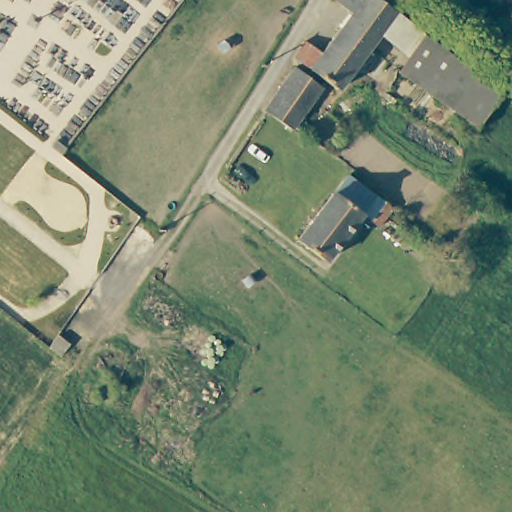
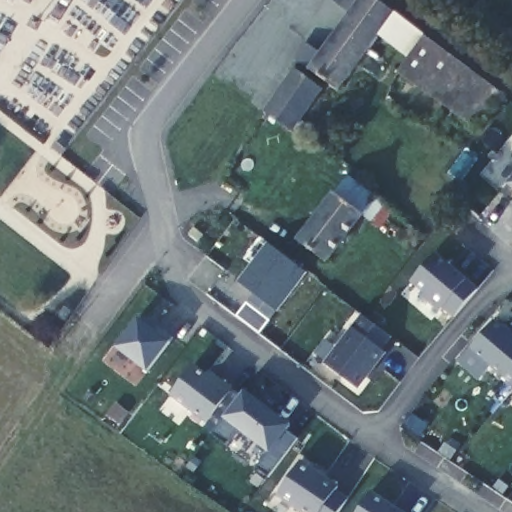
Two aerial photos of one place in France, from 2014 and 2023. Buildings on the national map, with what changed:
unchanged [(483,133),(457,109),(477,84),(424,43),(416,51),(385,28),(333,91),(295,63),(291,59),(300,44),(317,57),(357,5),(353,0),(389,0),(478,71),(511,97),(483,133)]
unchanged [(457,109),(451,116),(399,75),(424,43),(477,84),(457,109)]
unchanged [(329,92),(294,139),(260,114),(293,67),(329,92)]
unchanged [(302,232),(339,188),(354,169),(383,190),(366,209),(329,253),(302,232)]
new [(512,178),(512,185),(508,182),(512,178)]
new [(310,273),(277,311),(239,281),(269,243),(310,273)]
new [(454,318),(442,308),(440,311),(423,298),(427,292),(415,283),(436,253),(448,261),(468,278),(478,288),(454,318)]
new [(393,339),(385,350),(389,353),(358,388),(326,362),(363,314),(393,339)]
new [(147,372),(115,347),(140,316),(171,341),(147,372)]
new [(496,321),(512,334),(512,381),(472,348),(496,321)]
new [(170,396),(195,363),(231,387),(207,422),(170,396)]
new [(245,390),(292,424),(288,430),(297,438),(270,476),(258,467),(268,452),(237,428),(226,443),(214,434),(245,390)]
new [(301,512),(277,497),(302,460),(341,485),(338,489),(350,497),(340,512),(301,512)]
new [(406,512),(359,512),(372,491),(406,512)]

